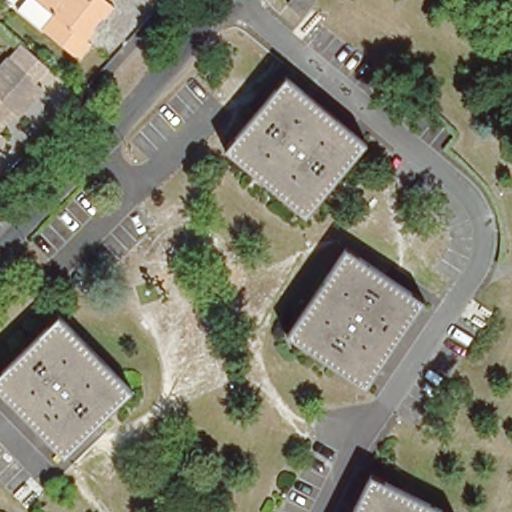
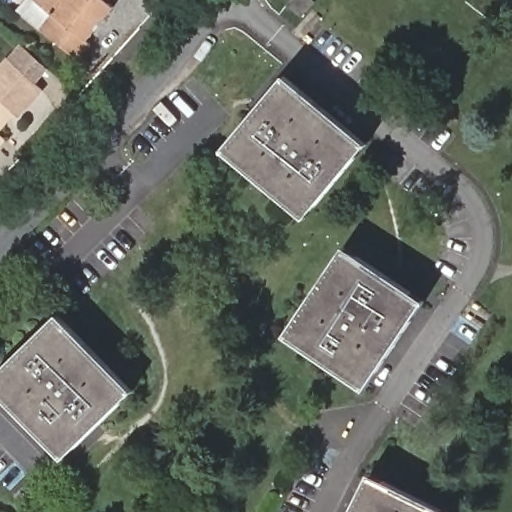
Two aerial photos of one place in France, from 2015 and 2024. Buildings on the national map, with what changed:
unchanged [(82,32),(86,35),(72,52),(39,22),(51,9),(41,0),(106,0),(108,2),(82,32)]
unchanged [(288,4),(291,0),(313,0),(314,1),(302,15),(288,4)]
unchanged [(44,85),(19,110),(16,107),(0,123),(0,66),(12,53),(44,85)]
unchanged [(305,216),(226,149),(286,78),(364,145),(305,216)]
unchanged [(0,141),(0,126),(7,134),(0,141)]
unchanged [(365,386),(287,336),(346,249),(422,301),(365,386)]
unchanged [(0,390),(0,374),(59,316),(132,390),(64,456),(0,390)]
unchanged [(371,475),(442,512),(353,512),(371,475)]

